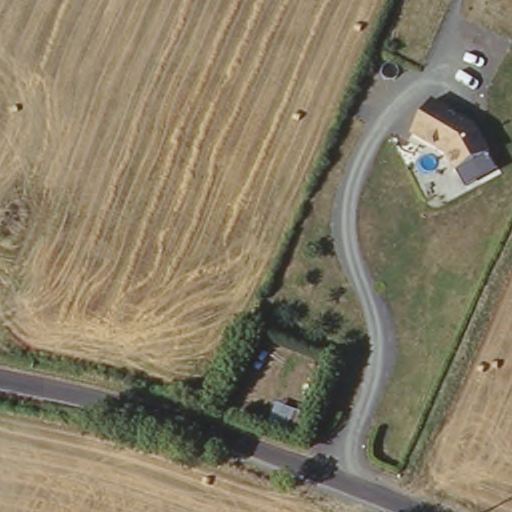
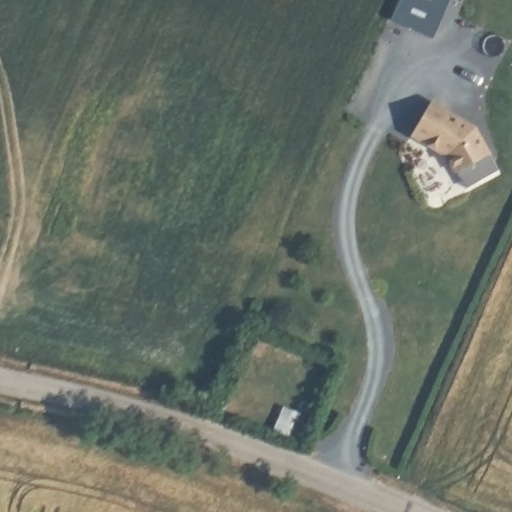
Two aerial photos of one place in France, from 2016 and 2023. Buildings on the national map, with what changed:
new [(393,22),(402,0),(451,0),(432,42),(393,22)]
unchanged [(473,127),(491,155),(453,178),(442,161),(409,140),(430,101),(473,127)]

